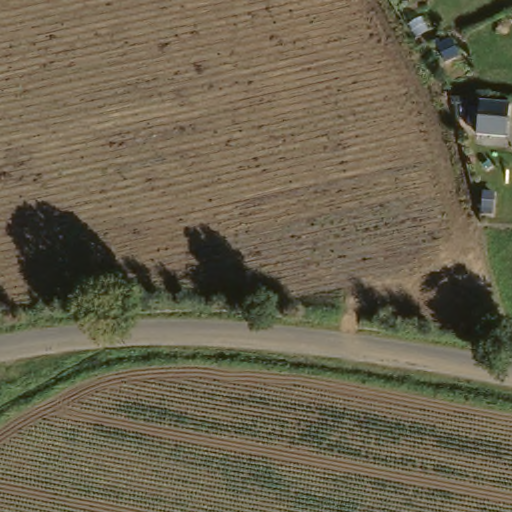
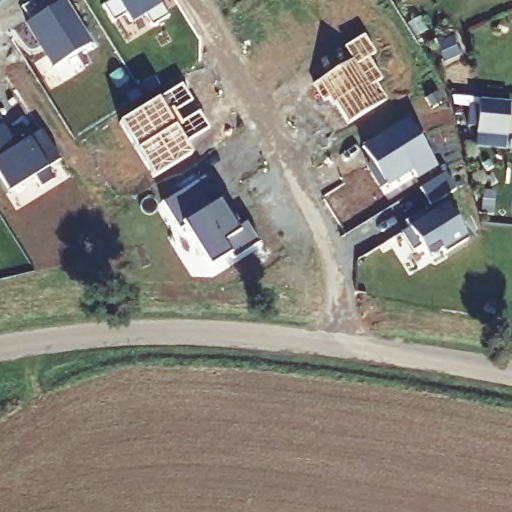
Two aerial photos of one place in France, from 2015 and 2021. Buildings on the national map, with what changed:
new [(59,0),(61,2),(65,0),(93,44),(55,67),(28,22),(31,21),(23,7),(34,0),(59,0)]
new [(162,0),(171,15),(154,25),(147,13),(134,21),(129,14),(116,22),(105,4),(112,0),(162,0)]
unchanged [(452,37),(464,32),(473,48),(460,55),(452,37)]
new [(349,48),(369,37),(379,54),(372,59),(386,80),(379,85),(389,101),(351,125),(339,105),(337,107),(333,100),(329,102),(318,86),(357,61),(349,48)]
new [(159,102),(176,129),(138,152),(121,126),(159,102)]
unchanged [(503,134),(476,134),(477,104),(509,107),(503,134)]
new [(38,122),(56,152),(44,160),(51,171),(37,179),(30,169),(6,184),(0,175),(0,119),(12,138),(38,122)]
new [(407,121),(437,167),(417,179),(411,171),(381,191),(371,175),(376,171),(362,150),(407,121)]
new [(176,129),(193,157),(155,180),(138,152),(176,129)]
new [(445,174),(456,191),(431,207),(419,190),(445,174)]
new [(207,178),(222,201),(227,210),(231,207),(244,227),(250,224),(263,245),(236,262),(233,257),(213,270),(188,230),(183,232),(164,204),(200,182),(207,178)]
new [(409,229),(406,223),(424,211),(429,217),(447,205),(469,240),(446,255),(443,251),(429,260),(422,248),(413,254),(401,235),(409,229)]

